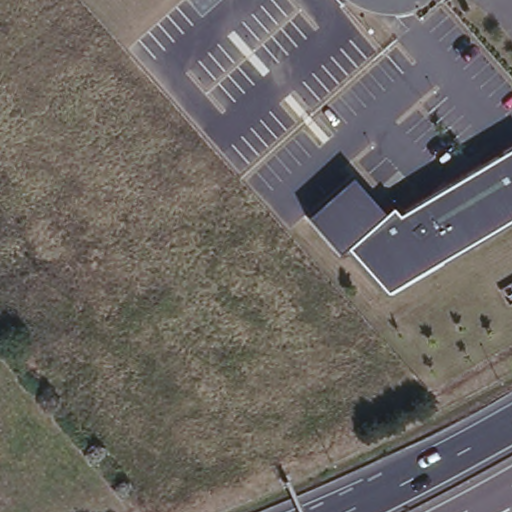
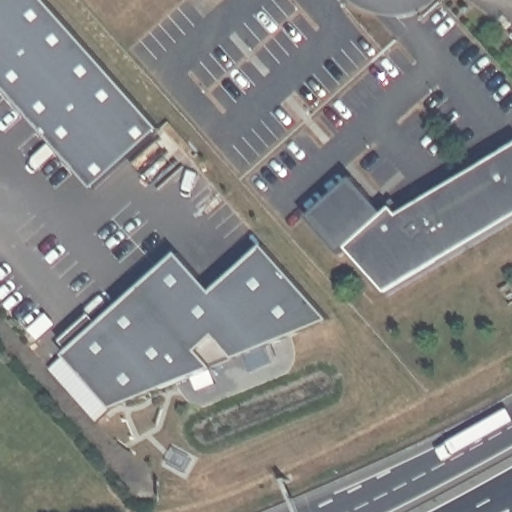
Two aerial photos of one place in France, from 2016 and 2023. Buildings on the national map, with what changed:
new [(45,0),(160,128),(92,189),(0,83),(0,0),(45,0)]
unchanged [(346,246),(338,255),(302,219),(352,174),(387,210),(392,205),(398,214),(512,145),(512,217),(387,290),(346,246)]
new [(177,257),(215,297),(270,247),(330,322),(267,347),(273,364),(252,373),(245,355),(108,408),(96,421),(49,370),(177,257)]

